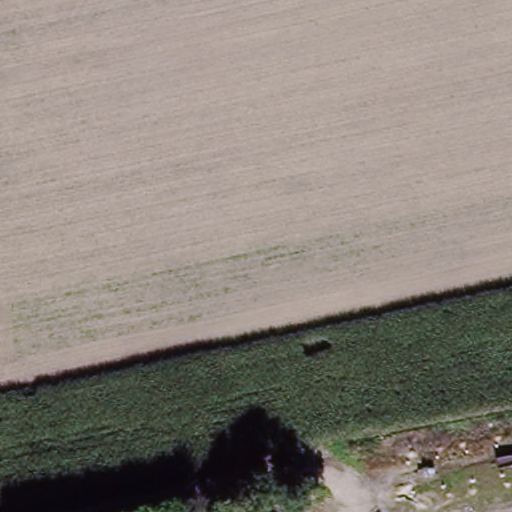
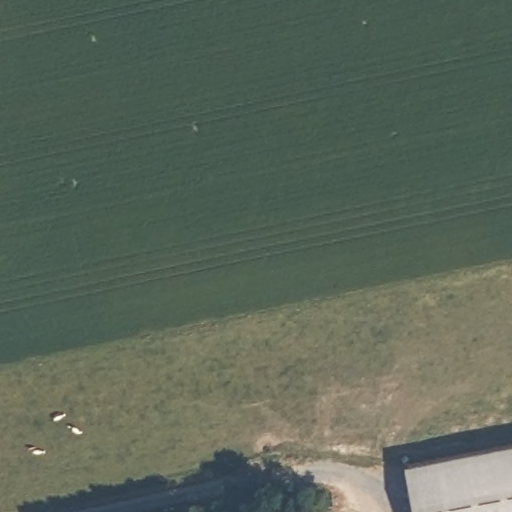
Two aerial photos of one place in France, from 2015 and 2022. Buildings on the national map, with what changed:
new [(405,462),(512,442),(512,512),(415,512),(405,462)]
unchanged [(276,512),(254,512),(275,507),(276,512)]

